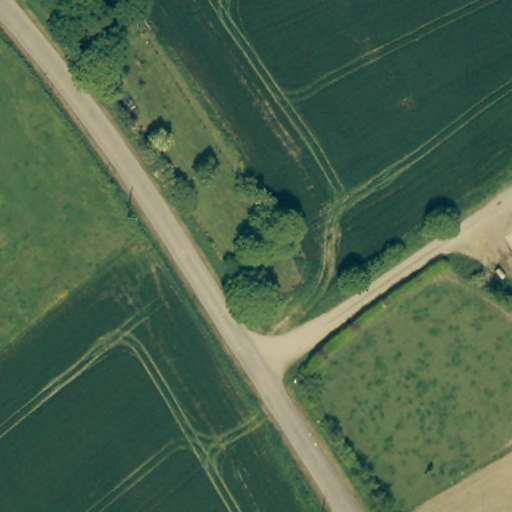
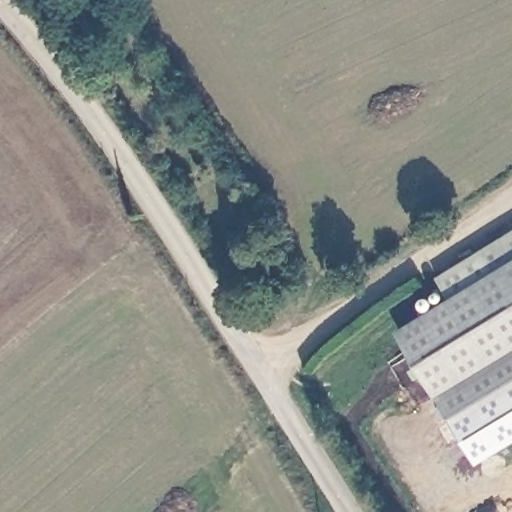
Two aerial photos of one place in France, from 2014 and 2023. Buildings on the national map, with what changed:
new [(450,418),(398,330),(450,299),(436,278),(512,233),(512,380),(450,418)]

